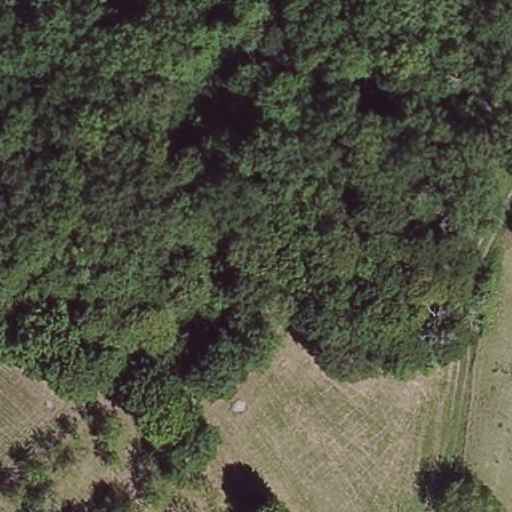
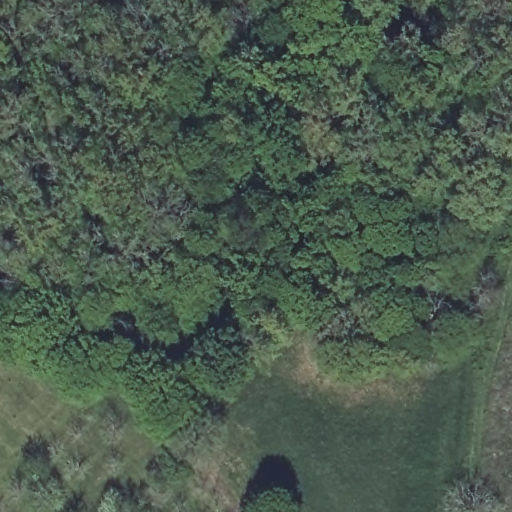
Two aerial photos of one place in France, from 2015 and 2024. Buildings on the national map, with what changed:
[]

